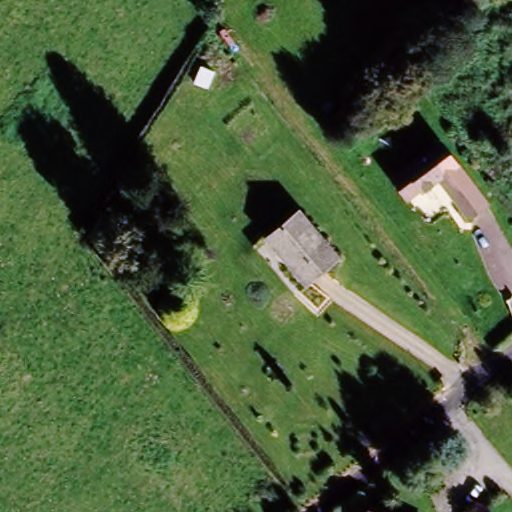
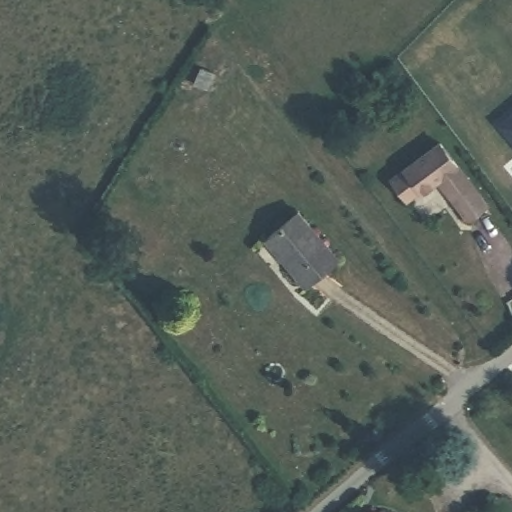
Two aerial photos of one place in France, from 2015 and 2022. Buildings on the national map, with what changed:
unchanged [(440,179),(425,192),(422,188),(409,198),(392,179),(440,140),(490,199),(471,214),(440,179)]
unchanged [(298,210),(340,252),(310,279),(270,237),(298,210)]
unchanged [(371,512),(361,512),(362,509),(371,512)]

